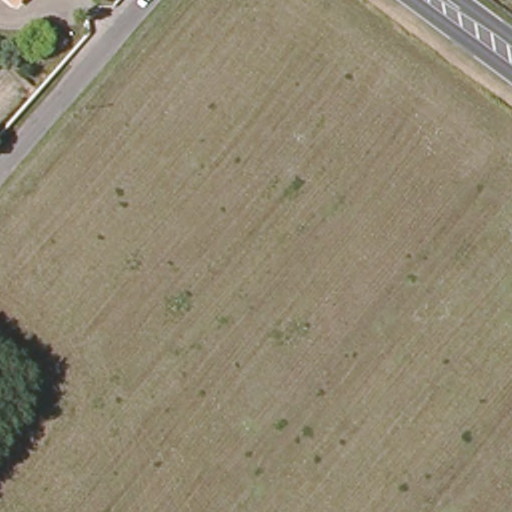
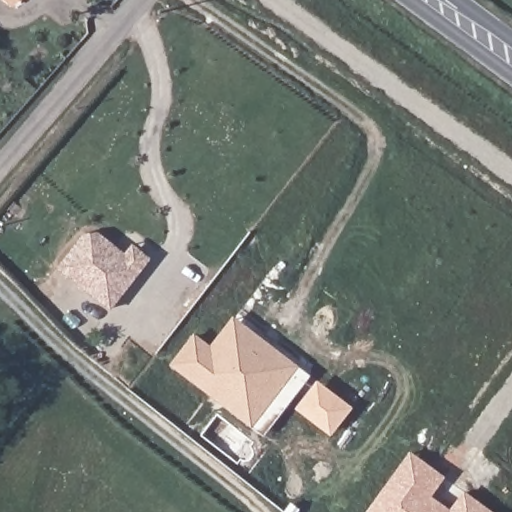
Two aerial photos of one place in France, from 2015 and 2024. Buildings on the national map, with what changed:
new [(83,233),(98,231),(124,252),(131,243),(151,258),(111,309),(57,268),(83,233)]
new [(234,315),(288,358),(285,361),(298,368),(252,428),(173,366),(194,333),(211,346),(234,315)]
new [(317,379),(353,407),(331,436),(295,408),(317,379)]
new [(410,450),(446,476),(432,496),(450,508),(464,490),(494,512),(365,512),(410,450)]

